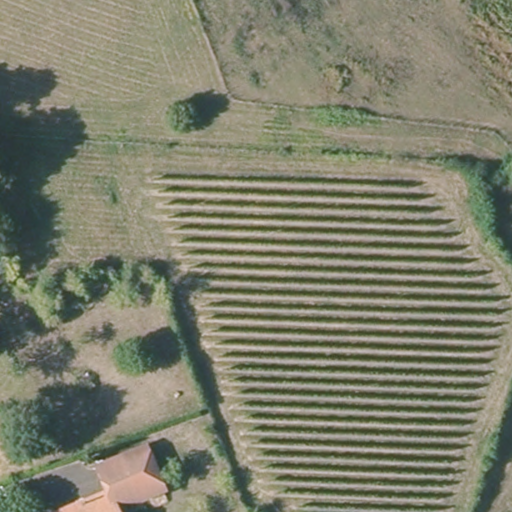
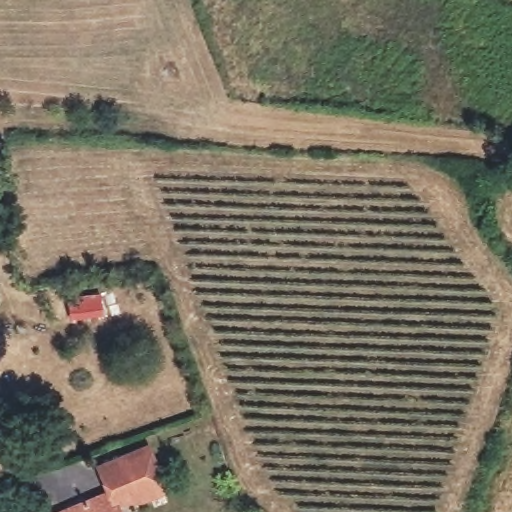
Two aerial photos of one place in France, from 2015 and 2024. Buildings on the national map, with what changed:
unchanged [(135,505),(123,496),(115,498),(111,495),(103,475),(99,468),(144,445),(147,451),(167,490),(135,505)]
unchanged [(78,512),(111,495),(115,498),(122,512),(78,512)]

